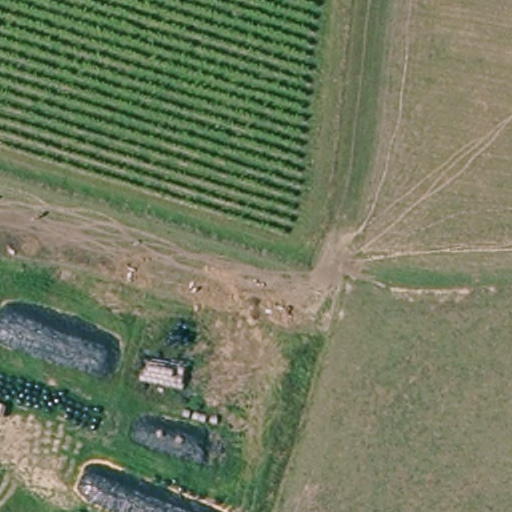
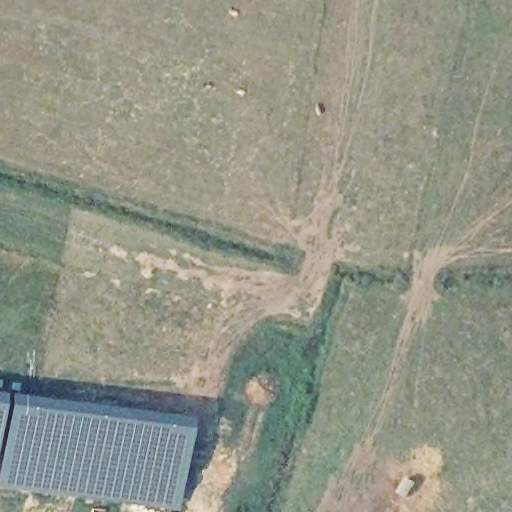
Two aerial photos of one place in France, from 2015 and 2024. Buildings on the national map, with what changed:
new [(0,400),(0,393),(1,393),(0,400)]
new [(0,431),(5,393),(186,416),(176,512),(162,512),(0,489),(0,431)]

